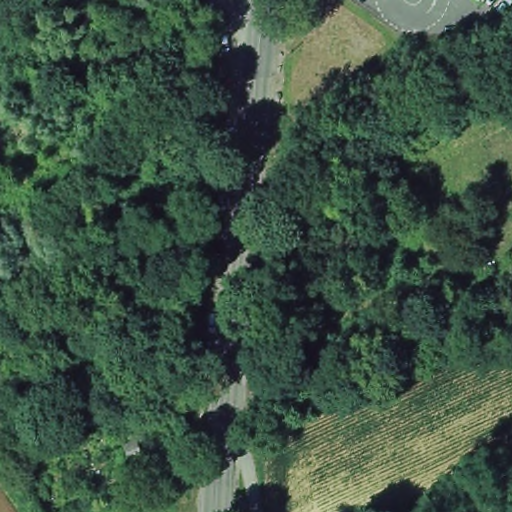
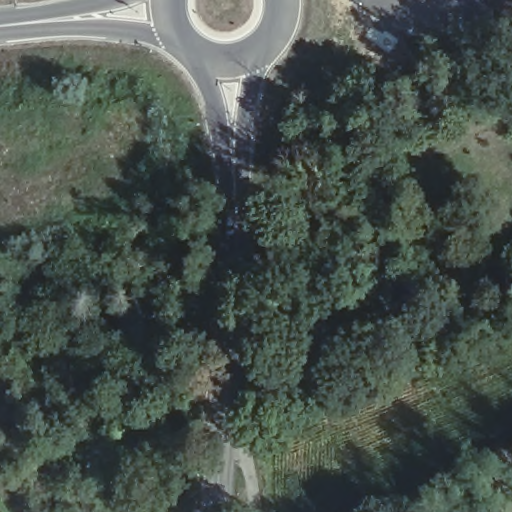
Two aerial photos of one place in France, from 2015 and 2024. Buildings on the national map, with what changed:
unchanged [(127,279),(120,260),(134,255),(142,274),(127,279)]
unchanged [(488,261),(500,297),(459,310),(448,274),(488,261)]
unchanged [(354,317),(377,308),(382,320),(361,330),(354,317)]

